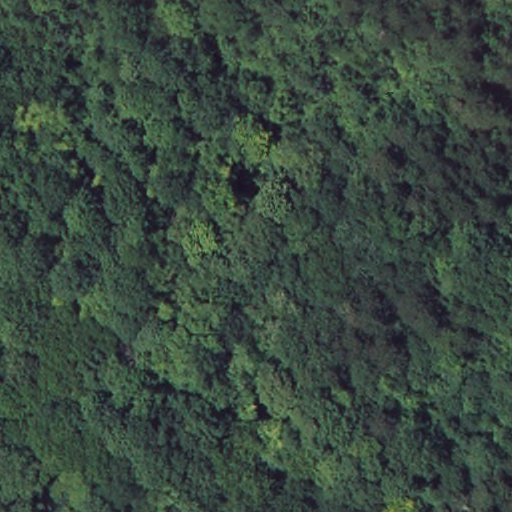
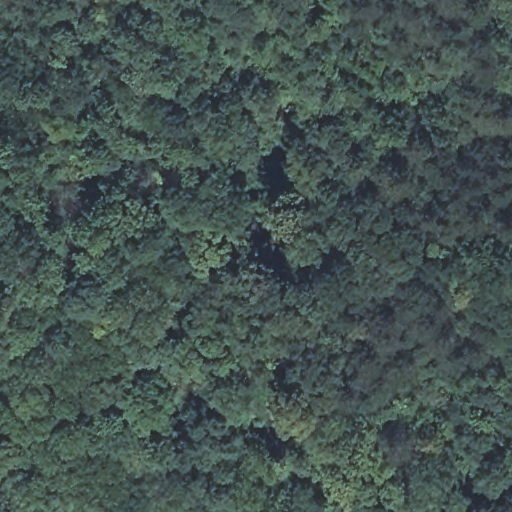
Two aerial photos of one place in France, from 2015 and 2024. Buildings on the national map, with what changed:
unchanged [(255,286),(282,270),(306,308),(278,324),(255,286)]
unchanged [(8,512),(0,512),(0,493),(4,493),(8,512)]

